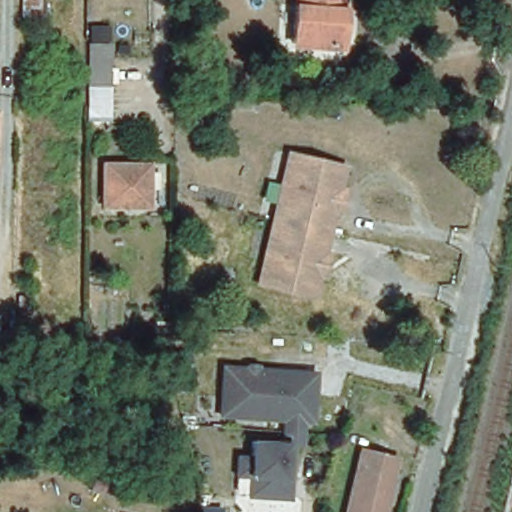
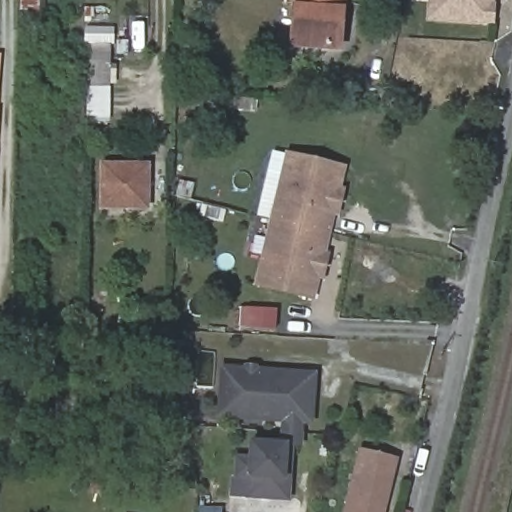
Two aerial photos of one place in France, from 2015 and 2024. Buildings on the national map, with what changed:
unchanged [(38,16),(21,16),(21,0),(38,0),(38,16)]
unchanged [(345,49),(296,47),(299,0),(348,0),(345,49)]
new [(429,0),(496,0),(494,24),(427,20),(429,0)]
unchanged [(109,42),(109,128),(88,128),(90,41),(109,42)]
unchanged [(339,206),(334,204),(328,230),(272,218),(286,150),(343,162),(338,184),(343,186),(339,206)]
unchanged [(149,205),(103,203),(104,162),(148,163),(149,205)]
unchanged [(324,273),(320,272),(314,296),(257,283),(272,218),(328,230),(323,252),(328,253),(324,273)]
unchanged [(317,427),(303,427),(303,446),(293,447),(290,499),(249,501),(250,480),(232,479),(235,453),(246,454),(248,440),(280,442),(278,422),(215,419),(219,366),(320,373),(317,427)]
unchanged [(391,465),(379,512),(344,512),(358,457),(391,465)]
new [(224,507),(224,512),(201,512),(201,507),(224,507)]

